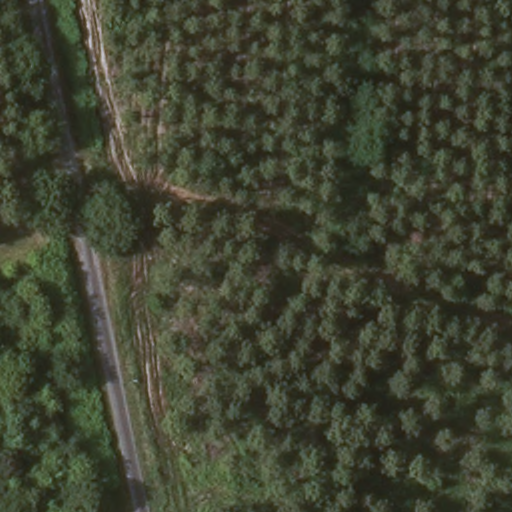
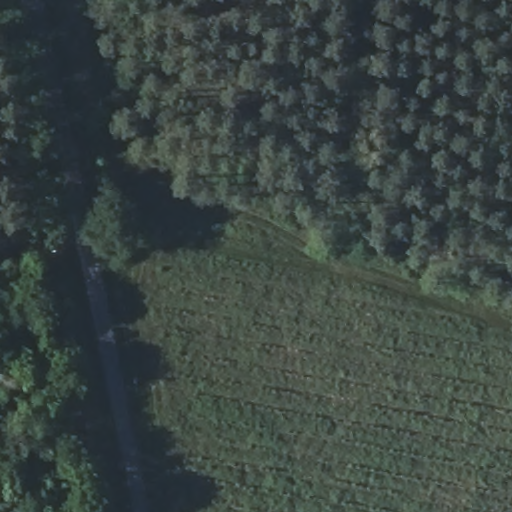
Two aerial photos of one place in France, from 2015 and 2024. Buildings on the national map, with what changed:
[]

